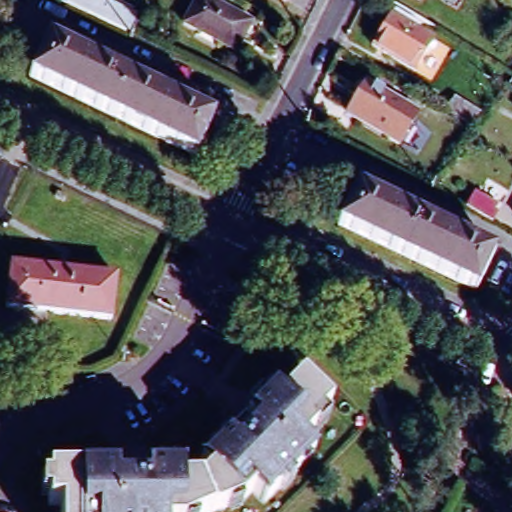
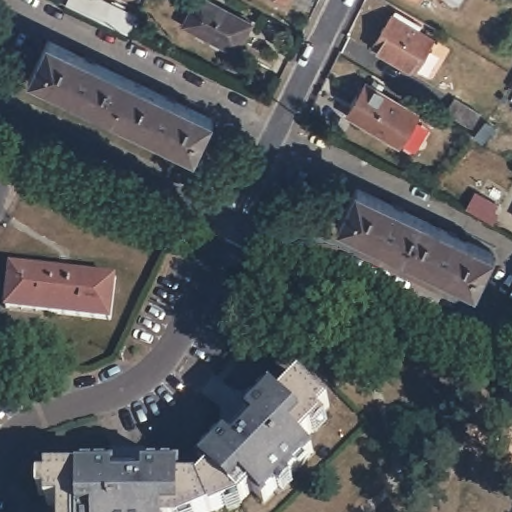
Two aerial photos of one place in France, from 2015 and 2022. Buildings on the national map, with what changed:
unchanged [(66,4),(68,0),(107,0),(137,15),(128,34),(66,4)]
unchanged [(235,51),(184,24),(197,0),(209,0),(251,22),(235,51)]
unchanged [(280,2),(275,0),(281,0),(280,2)]
unchanged [(414,11),(396,0),(421,0),(414,11)]
unchanged [(438,6),(429,0),(442,0),(438,6)]
unchanged [(446,62),(434,82),(369,44),(388,12),(389,12),(392,8),(417,23),(415,27),(432,37),(425,49),(446,62)]
unchanged [(195,155),(31,76),(49,40),(212,118),(195,155)]
unchanged [(399,144),(346,112),(364,82),(417,114),(399,144)]
unchanged [(473,125),(445,109),(453,96),(481,112),(473,125)]
unchanged [(508,105),(512,97),(512,107),(508,105)]
unchanged [(471,290),(335,225),(352,187),(488,252),(471,290)]
unchanged [(475,192),(501,207),(492,222),(466,207),(475,192)]
unchanged [(5,307),(10,266),(115,278),(110,320),(5,307)]
unchanged [(143,472),(143,471),(179,471),(178,484),(195,483),(207,472),(197,462),(223,437),(225,438),(246,417),(245,416),(257,403),(251,397),(262,387),(267,393),(270,391),(278,400),(300,381),(328,409),(307,429),(312,433),(301,445),(311,456),(287,481),(282,476),(272,485),(277,490),(262,505),(250,492),(239,503),(234,499),(225,508),(216,512),(57,512),(57,507),(45,507),(45,475),(77,476),(77,471),(112,471),(112,472),(143,472)]

